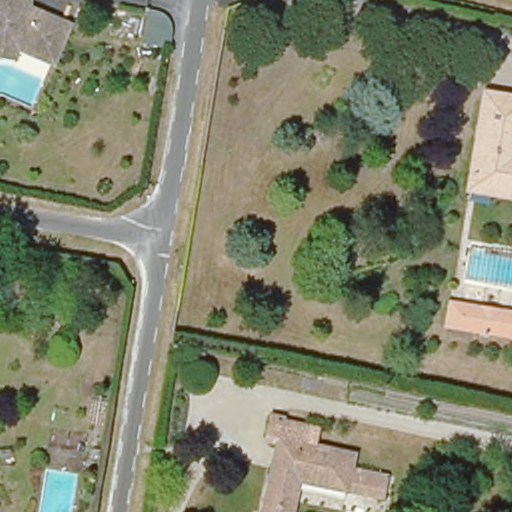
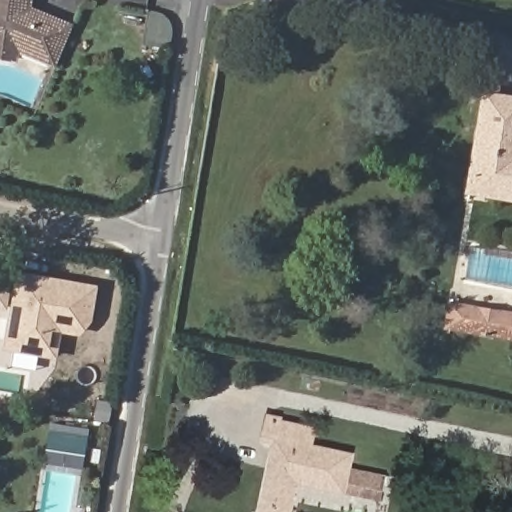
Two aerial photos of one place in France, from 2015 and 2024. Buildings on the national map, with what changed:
unchanged [(0,0),(28,0),(28,1),(71,18),(59,55),(10,39),(9,48),(8,51),(0,49),(0,0)]
unchanged [(481,93),(512,97),(512,181),(468,174),(481,93)]
unchanged [(512,181),(512,201),(465,194),(468,174),(512,181)]
new [(1,349),(16,270),(96,285),(90,323),(79,336),(61,333),(55,359),(1,349)]
unchanged [(512,307),(512,338),(445,327),(450,297),(512,307)]
unchanged [(300,479),(296,501),(293,512),(264,512),(279,441),(270,438),(274,416),(285,418),(284,420),(321,428),(317,446),(356,454),(349,490),(344,489),(300,479)]
new [(46,449),(50,423),(88,429),(84,455),(46,449)]
unchanged [(340,511),(296,501),(300,479),(344,489),(340,511)]

